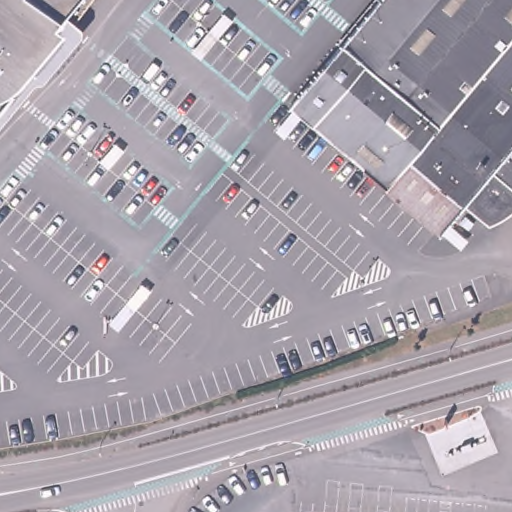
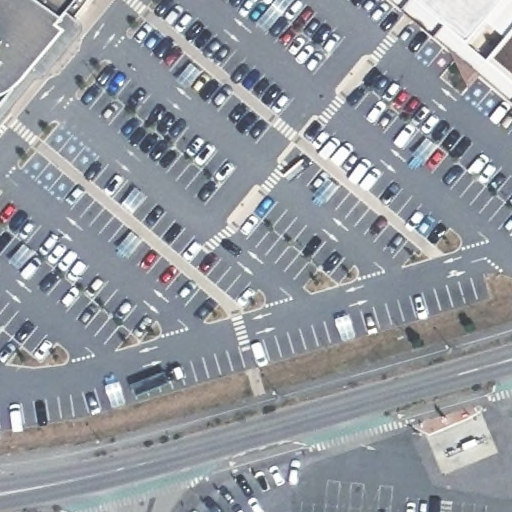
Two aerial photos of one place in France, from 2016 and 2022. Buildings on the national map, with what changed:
unchanged [(71,16),(64,24),(71,29),(0,117),(0,0),(94,0),(78,21),(71,16)]
demolished [(383,0),(422,0),(316,126),(292,106),(383,0)]
demolished [(467,207),(445,233),(431,222),(422,233),(381,198),(385,194),(372,183),(362,175),(367,169),(316,126),(422,0),(512,0),(512,189),(494,175),(467,207)]
new [(512,0),(512,102),(390,0),(512,0)]
unchanged [(431,222),(445,233),(436,244),(422,233),(431,222)]

